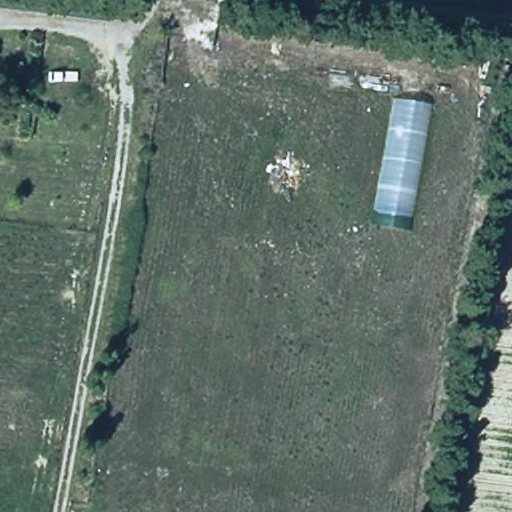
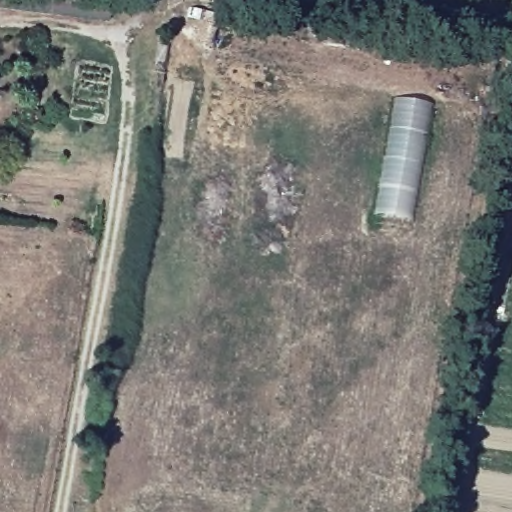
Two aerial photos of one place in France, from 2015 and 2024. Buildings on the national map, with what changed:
unchanged [(371,225),(392,98),(428,104),(407,231),(371,225)]

